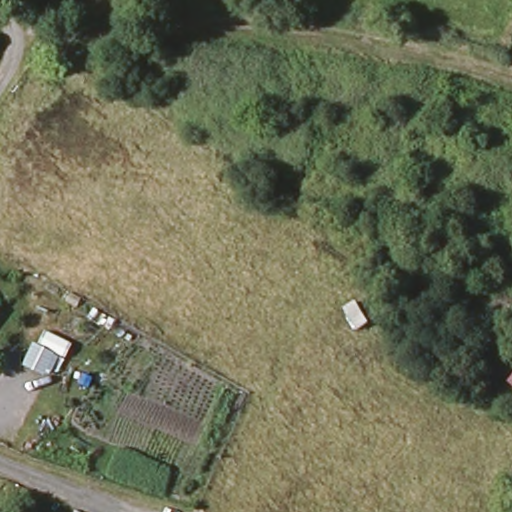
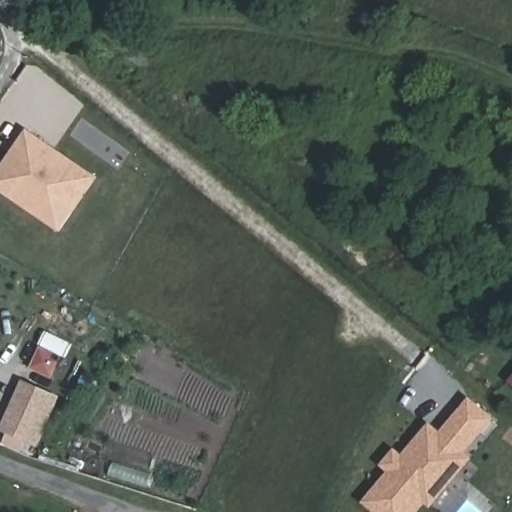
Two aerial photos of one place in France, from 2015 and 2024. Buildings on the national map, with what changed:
new [(70,212),(59,228),(0,189),(0,175),(14,154),(18,148),(28,133),(78,168),(94,178),(70,212)]
new [(41,347),(66,359),(59,375),(56,372),(53,378),(32,368),(41,347)]
unchanged [(512,374),(512,390),(504,382),(512,374)]
new [(3,444),(7,433),(0,430),(0,427),(22,380),(61,397),(39,447),(27,440),(21,452),(3,444)]
new [(402,458),(429,426),(440,435),(458,414),(469,401),(496,424),(485,437),(468,459),(447,483),(430,503),(423,498),(411,512),(378,512),(365,501),(391,471),(384,465),(394,452),(402,458)]

